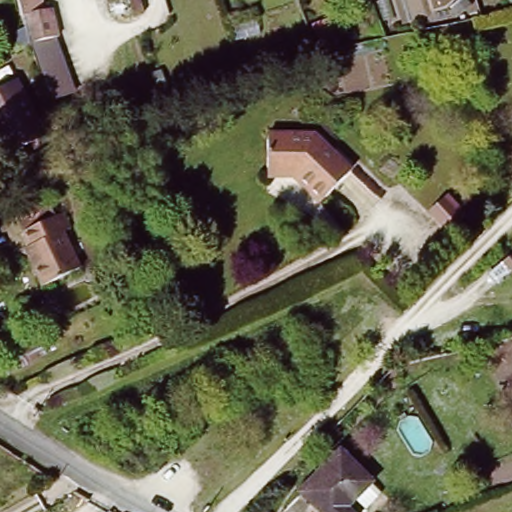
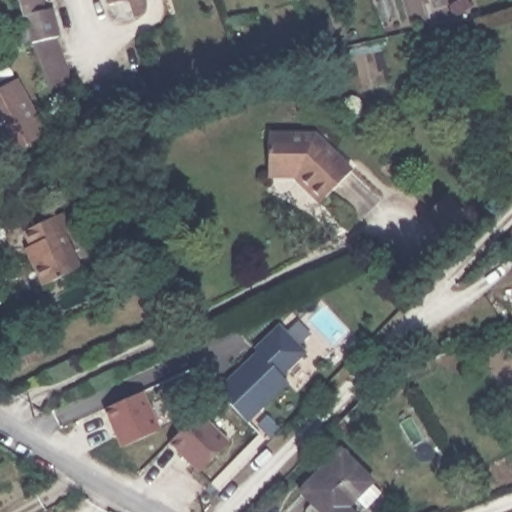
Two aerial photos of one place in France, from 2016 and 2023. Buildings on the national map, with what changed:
unchanged [(47,134),(9,154),(0,136),(0,91),(21,80),(47,134)]
unchanged [(318,135),(351,171),(319,203),(306,191),(309,187),(300,177),(271,177),(271,134),(318,135)]
unchanged [(78,234),(70,238),(86,274),(49,291),(39,269),(44,266),(30,237),(34,235),(26,217),(59,202),(67,220),(70,218),(78,234)]
unchanged [(453,249),(435,231),(449,216),(468,234),(453,249)]
new [(283,376),(288,382),(247,421),(216,390),(257,351),(254,348),(279,324),(306,353),(283,376)]
unchanged [(50,359),(13,376),(7,362),(43,346),(50,359)]
new [(121,447),(105,408),(145,391),(160,428),(121,447)]
new [(199,471),(170,443),(200,411),(229,441),(199,471)]
unchanged [(377,484),(363,500),(353,491),(342,501),(351,511),(350,512),(323,512),(304,495),(344,453),(377,484)]

